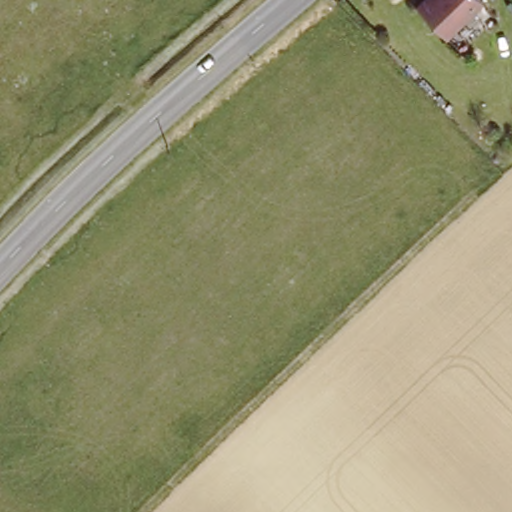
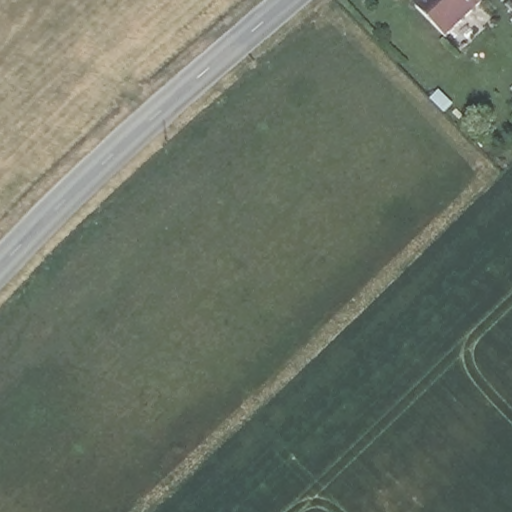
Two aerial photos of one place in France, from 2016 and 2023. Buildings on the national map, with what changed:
unchanged [(410,10),(421,0),(470,0),(477,7),(441,42),(410,10)]

